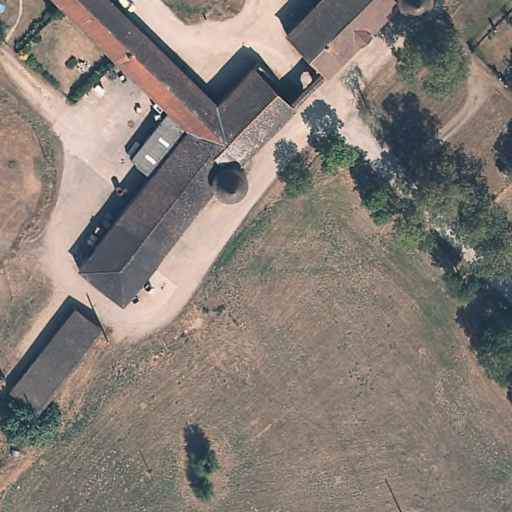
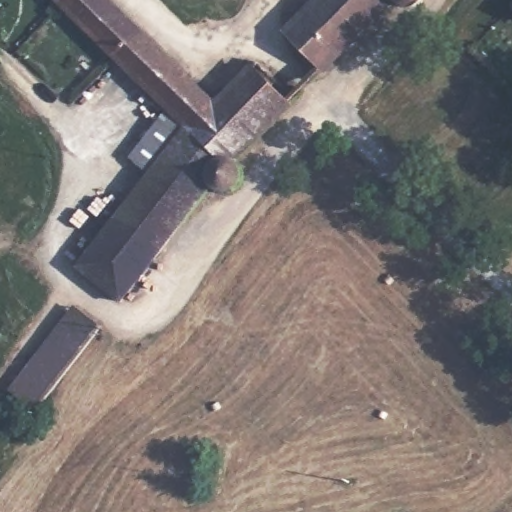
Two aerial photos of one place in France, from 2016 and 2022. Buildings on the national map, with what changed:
unchanged [(107,0),(211,99),(252,56),(272,75),(264,84),(287,106),(231,164),(241,173),(242,182),(238,189),(232,194),(225,194),(218,190),(212,183),(121,300),(78,267),(150,168),(128,150),(168,98),(66,0),(107,0)]
unchanged [(417,12),(410,17),(404,17),(398,13),(394,5),(320,78),(278,37),(315,0),(425,0),(425,3),(417,12)]
unchanged [(14,399),(31,376),(74,314),(104,335),(90,356),(89,355),(59,396),(41,419),(14,399)]

